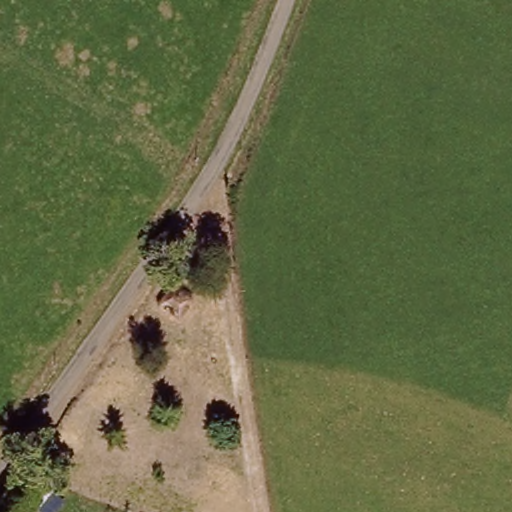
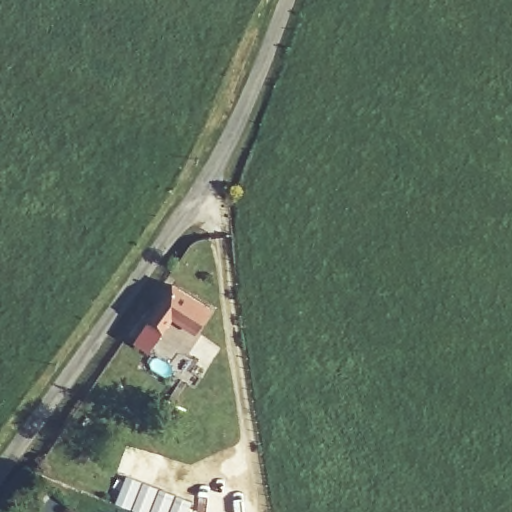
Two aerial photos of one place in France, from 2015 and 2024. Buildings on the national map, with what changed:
demolished [(148,294),(167,267),(200,285),(184,313),(148,294)]
new [(195,333),(173,317),(147,354),(127,340),(168,280),(211,307),(195,333)]
new [(192,503),(189,512),(138,512),(118,504),(128,478),(192,503)]

